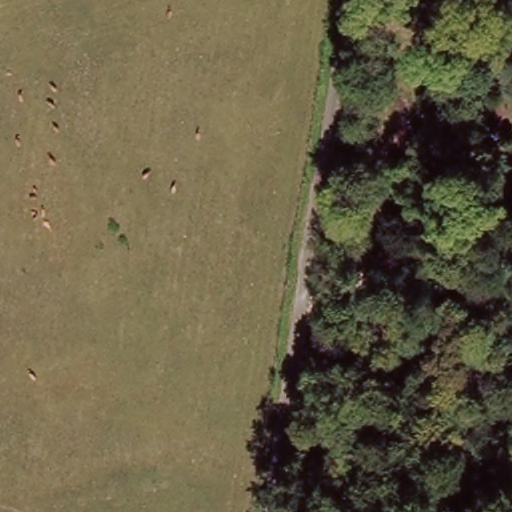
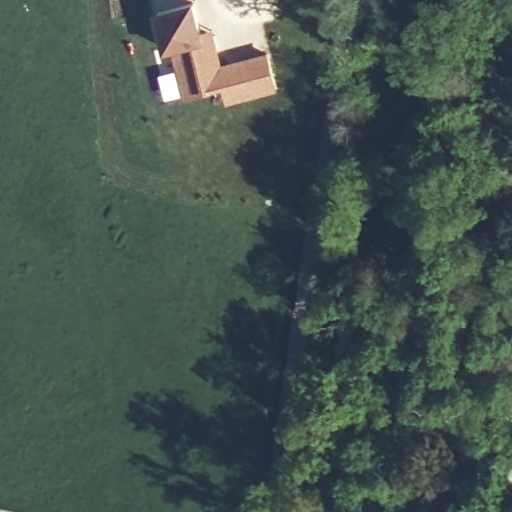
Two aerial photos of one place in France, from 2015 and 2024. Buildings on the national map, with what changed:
new [(214,25),(223,63),(267,51),(277,89),(227,102),(223,86),(185,95),(172,48),(167,49),(157,10),(192,0),(196,0),(203,28),(214,25)]

